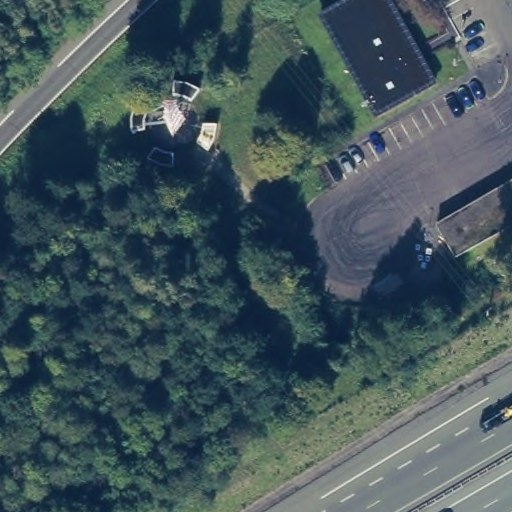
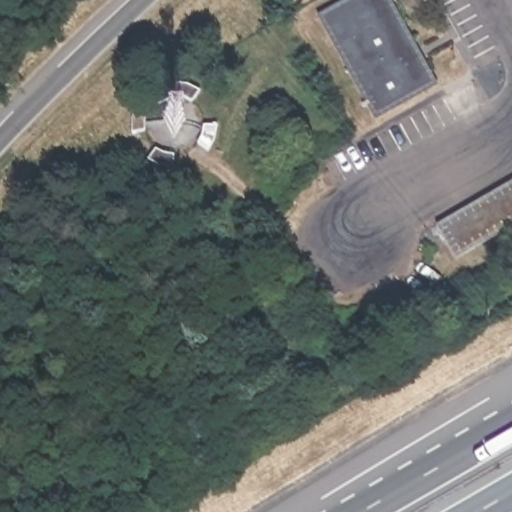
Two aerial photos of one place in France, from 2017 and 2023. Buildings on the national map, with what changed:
unchanged [(386,0),(434,86),(375,119),(323,19),(358,0),(386,0)]
unchanged [(512,226),(456,258),(437,224),(512,182),(512,226)]

